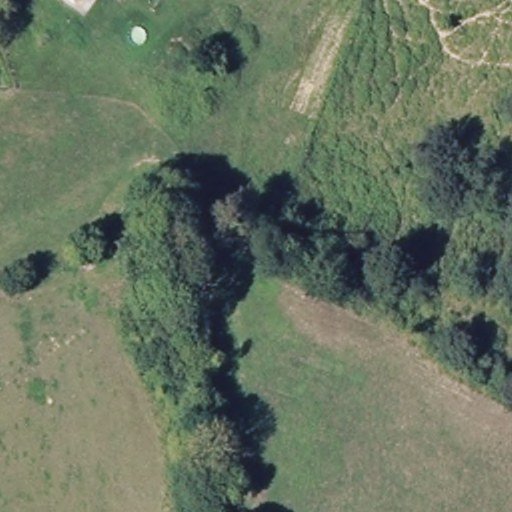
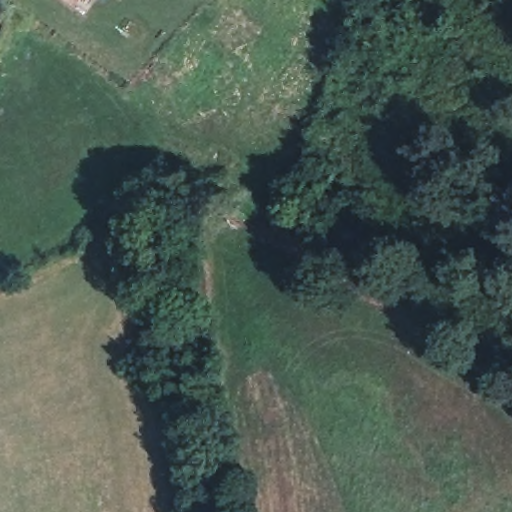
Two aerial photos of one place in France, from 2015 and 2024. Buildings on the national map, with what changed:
unchanged [(50,0),(71,0),(63,10),(50,0)]
unchanged [(84,0),(83,1),(82,0),(84,0)]

